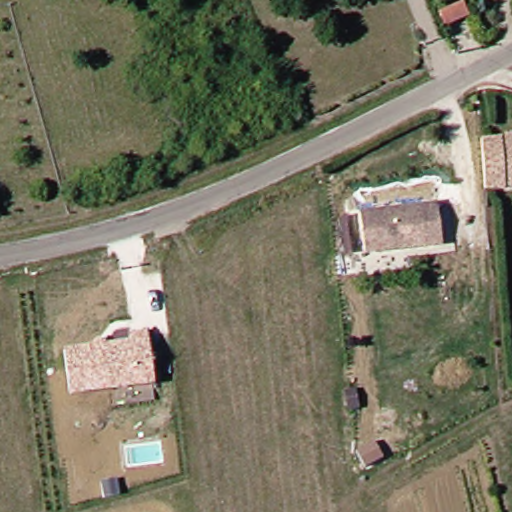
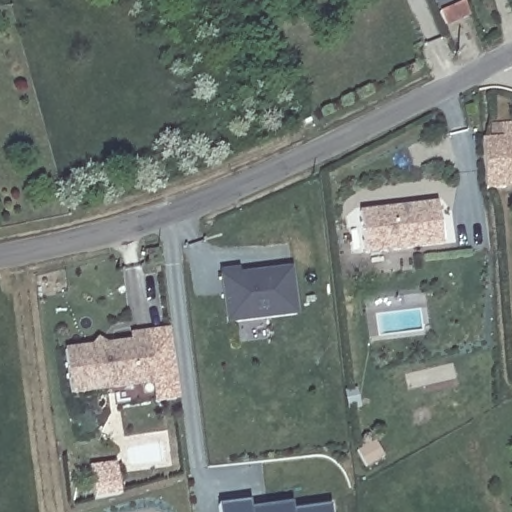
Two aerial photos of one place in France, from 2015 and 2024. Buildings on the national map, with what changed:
unchanged [(461,25),(434,36),(428,23),(455,11),(461,25)]
unchanged [(512,133),(512,169),(506,169),(505,184),(485,185),(482,135),(512,133)]
unchanged [(445,245),(367,253),(363,209),(441,201),(445,245)]
new [(292,268),(298,314),(227,324),(221,270),(240,268),(240,273),(292,268)]
unchanged [(63,349),(90,345),(96,338),(106,342),(130,339),(129,333),(148,332),(155,385),(68,395),(63,349)]
new [(249,502),(250,509),(292,503),(293,510),(329,506),(330,512),(220,512),(219,504),(249,502)]

